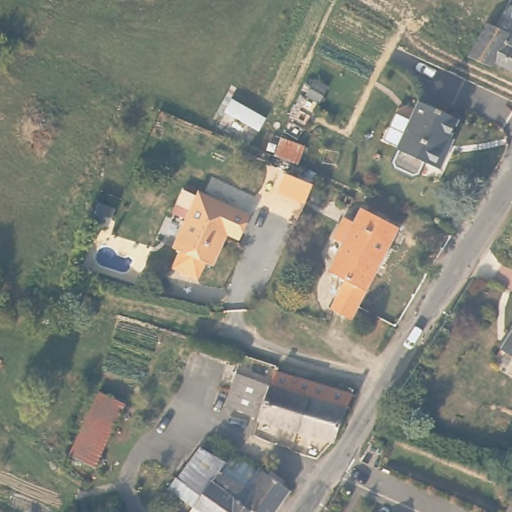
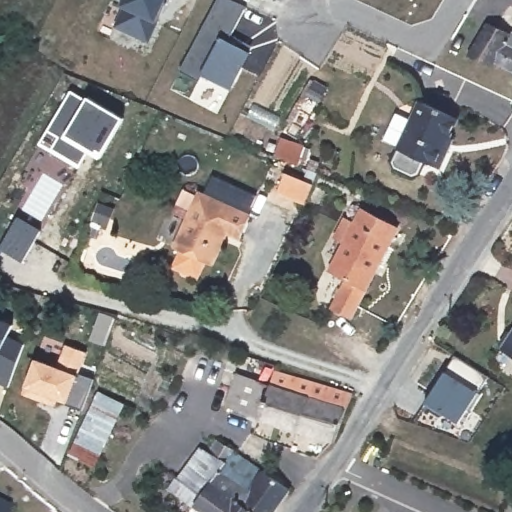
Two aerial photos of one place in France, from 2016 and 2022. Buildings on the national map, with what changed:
new [(122,0),(166,0),(156,23),(148,41),(113,26),(119,6),(122,0)]
unchanged [(230,36),(250,49),(229,87),(203,74),(199,81),(182,71),(220,0),(231,0),(242,5),(230,36)]
unchanged [(483,23),(512,36),(512,72),(489,61),(486,66),(463,57),(454,53),(461,41),(474,18),(483,23)]
new [(123,118),(99,158),(89,152),(78,167),(39,144),(70,90),(86,99),(88,97),(123,118)]
unchanged [(443,150),(435,169),(420,161),(414,174),(408,175),(390,167),(388,161),(393,149),(415,101),(452,119),(444,136),(448,139),(443,150)]
unchanged [(286,173),(313,184),(306,201),(279,190),(286,173)]
unchanged [(180,248),(194,217),(204,194),(208,195),(255,217),(245,238),(231,231),(229,234),(223,232),(221,237),(222,242),(222,249),(220,257),(216,264),(209,261),(202,277),(179,267),(187,251),(180,248)]
unchanged [(330,265),(343,238),(333,233),(344,213),(354,218),(361,204),(398,224),(352,313),(331,303),(346,274),(330,265)]
new [(0,243),(16,216),(41,230),(21,262),(0,250),(0,243)]
new [(5,336),(23,343),(8,387),(0,383),(0,318),(12,324),(5,336)]
unchanged [(501,349),(512,332),(512,356),(501,349)]
new [(82,409),(68,402),(56,398),(54,405),(21,393),(24,388),(35,358),(56,366),(64,344),(87,352),(78,374),(93,377),(82,409)]
new [(457,423),(424,401),(445,370),(447,371),(457,357),(487,374),(475,390),(479,393),(457,423)]
unchanged [(241,369),(274,381),(278,367),(357,391),(351,404),(340,437),(263,414),(263,413),(230,401),(241,369)]
unchanged [(99,393),(125,406),(95,467),(69,454),(99,393)]
unchanged [(204,509),(200,506),(199,508),(173,489),(181,478),(184,480),(206,448),(213,453),(221,441),(243,450),(242,453),(294,489),(279,512),(202,512),(204,509)]
new [(8,512),(0,512),(0,499),(11,505),(8,512)]

